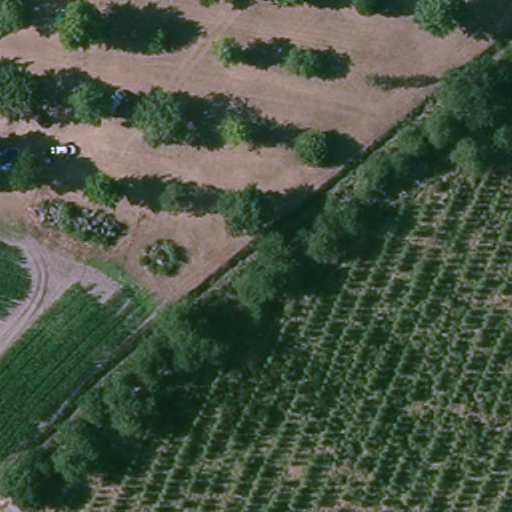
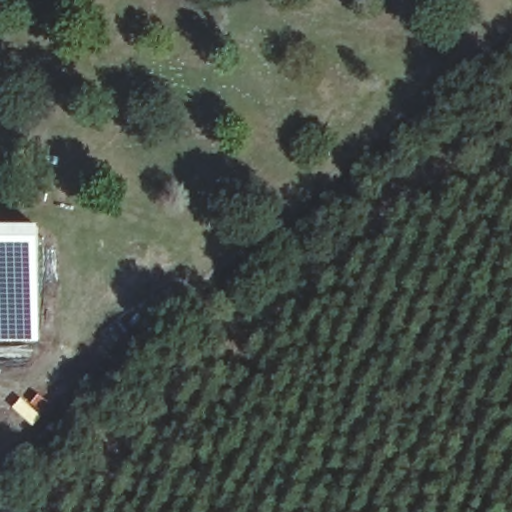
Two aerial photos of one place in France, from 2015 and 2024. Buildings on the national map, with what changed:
new [(40,224),(40,341),(0,341),(0,225),(40,224)]

